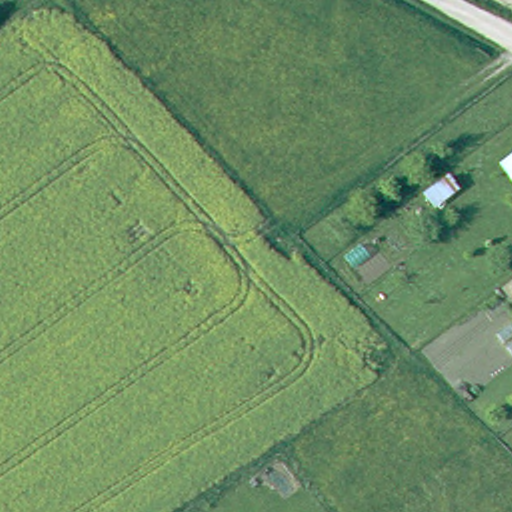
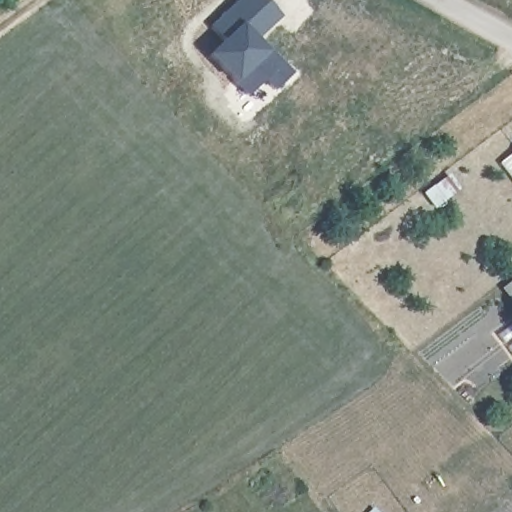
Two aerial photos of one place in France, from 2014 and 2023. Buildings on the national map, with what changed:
new [(212,26),(239,0),(265,0),(282,17),(260,39),(294,73),(277,90),(265,79),(250,95),(237,82),(210,54),(226,39),(212,26)]

